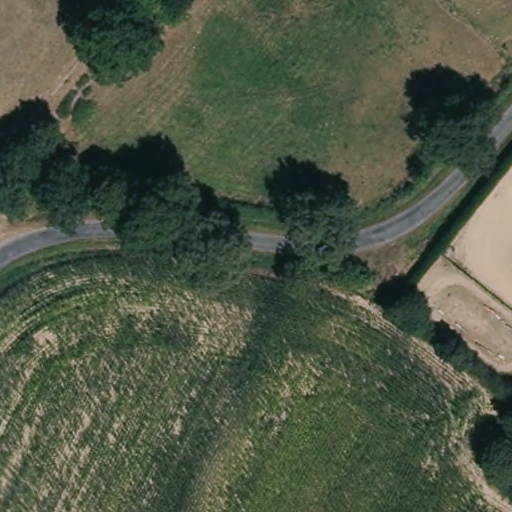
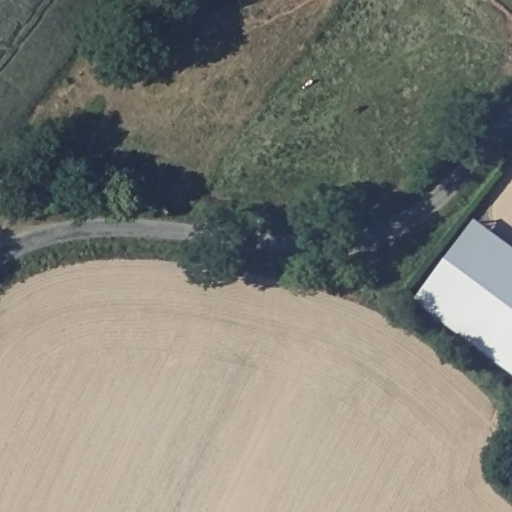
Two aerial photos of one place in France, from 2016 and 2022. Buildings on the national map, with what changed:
new [(512,252),(512,376),(414,303),(473,223),(512,252)]

